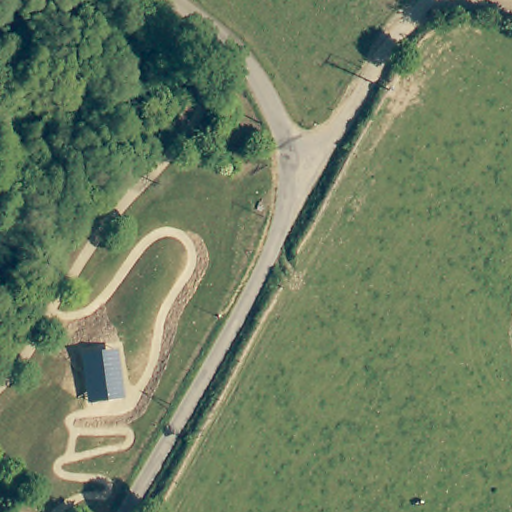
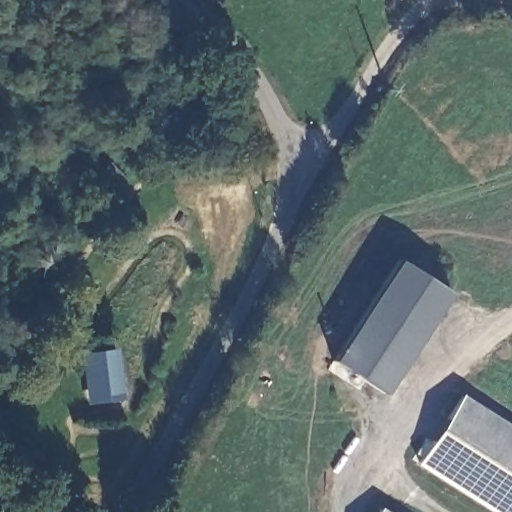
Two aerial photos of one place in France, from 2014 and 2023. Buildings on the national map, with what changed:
new [(386,395),(334,361),(399,260),(451,294),(386,395)]
unchanged [(87,405),(80,354),(118,348),(125,399),(87,405)]
new [(512,427),(512,512),(493,512),(419,465),(462,395),(512,427)]
new [(390,512),(379,512),(382,507),(390,512)]

